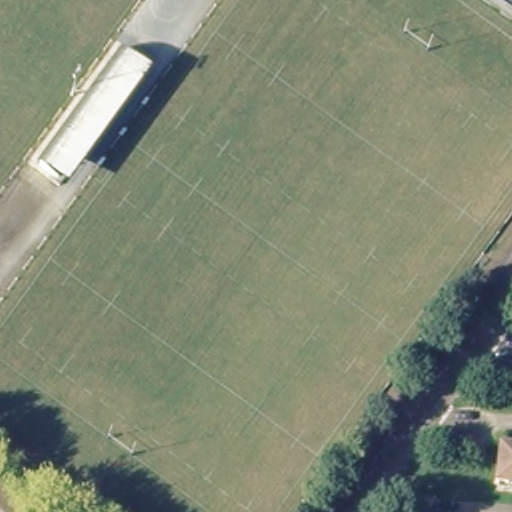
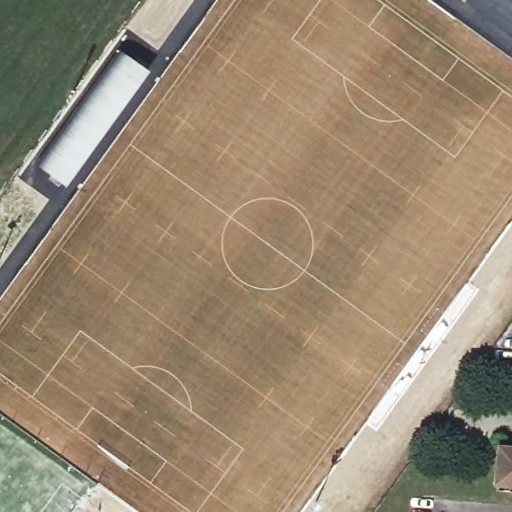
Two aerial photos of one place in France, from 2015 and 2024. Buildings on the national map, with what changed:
unchanged [(154,72),(69,180),(49,165),(133,56),(154,72)]
unchanged [(499,448),(512,450),(512,485),(494,483),(499,448)]

